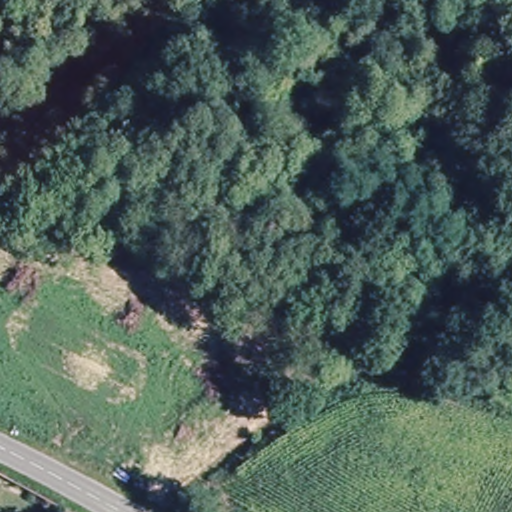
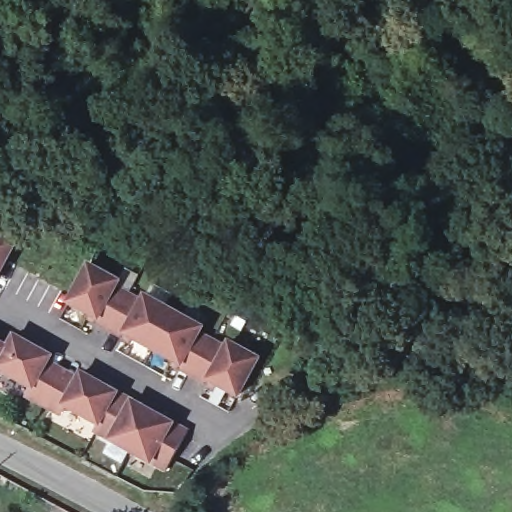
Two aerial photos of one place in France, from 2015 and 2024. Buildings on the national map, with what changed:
new [(15,246),(0,273),(0,238),(15,246)]
new [(90,266),(119,282),(116,288),(129,295),(110,330),(95,322),(97,318),(69,303),(90,266)]
new [(129,295),(142,302),(145,297),(174,312),(153,350),(126,334),(124,338),(110,330),(129,295)]
new [(174,312),(202,328),(199,334),(212,341),(194,376),(179,368),(180,365),(153,350),(174,312)]
new [(60,415),(44,405),(27,396),(32,388),(0,370),(0,363),(9,348),(15,337),(50,357),(47,362),(63,371),(78,380),(81,374),(116,393),(132,402),(152,413),(131,451),(95,432),(100,425),(65,406),(60,415)]
new [(212,341),(226,349),(230,343),(259,360),(239,396),(210,381),(208,385),(194,376),(212,341)]
new [(9,348),(0,363),(0,343),(9,348)]
new [(172,425),(188,433),(173,459),(166,471),(131,451),(152,413),(172,425)]

